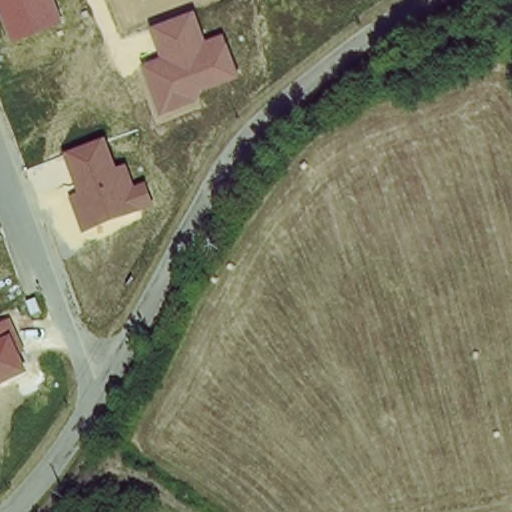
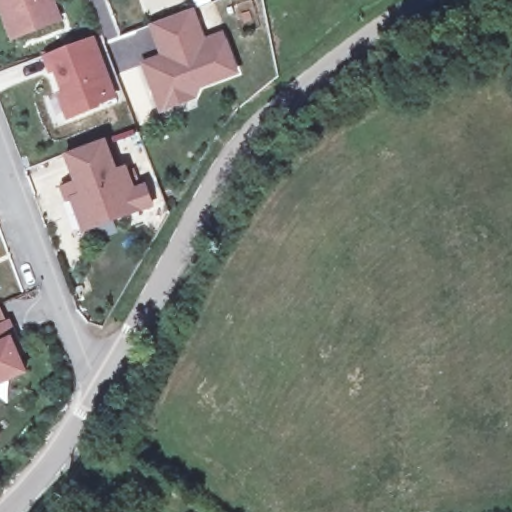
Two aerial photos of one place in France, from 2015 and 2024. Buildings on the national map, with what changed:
unchanged [(64,22),(14,40),(0,8),(0,0),(56,0),(64,22)]
unchanged [(196,8),(207,38),(225,32),(240,75),(200,90),(202,99),(162,113),(144,62),(163,54),(152,23),(196,8)]
new [(96,29),(119,88),(101,95),(103,98),(73,109),(65,88),(70,86),(61,61),(55,63),(49,47),(96,29)]
unchanged [(109,138),(119,170),(129,166),(136,188),(149,184),(156,209),(84,233),(72,197),(80,193),(67,154),(109,138)]
unchanged [(27,351),(21,354),(29,374),(0,386),(0,324),(13,319),(27,351)]

